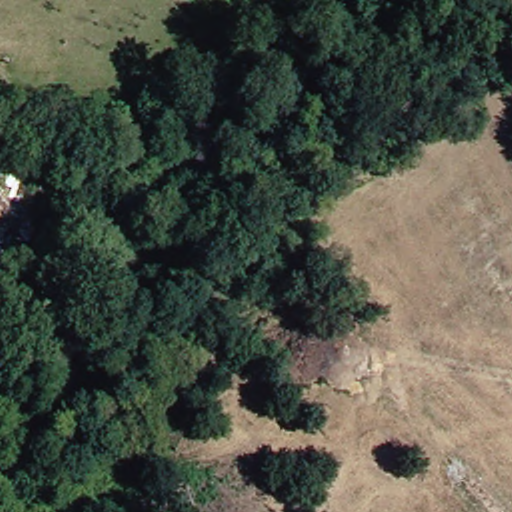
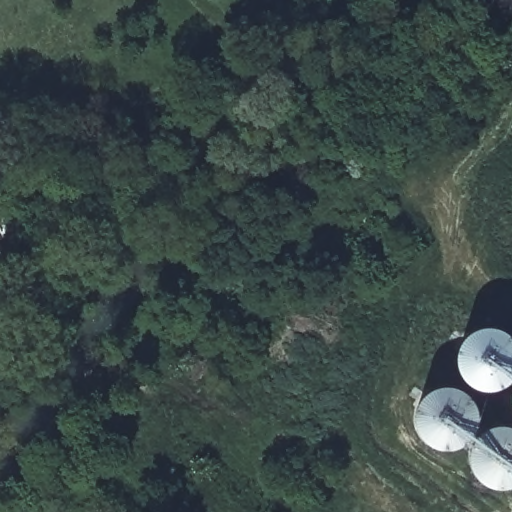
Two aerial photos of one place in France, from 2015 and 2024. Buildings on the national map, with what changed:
new [(483,484),(474,470),(468,447),(447,452),(427,444),(416,422),(422,400),(441,388),(469,390),(457,362),(464,343),(481,330),(505,331),(512,339),(512,488),(502,490),(483,484)]

